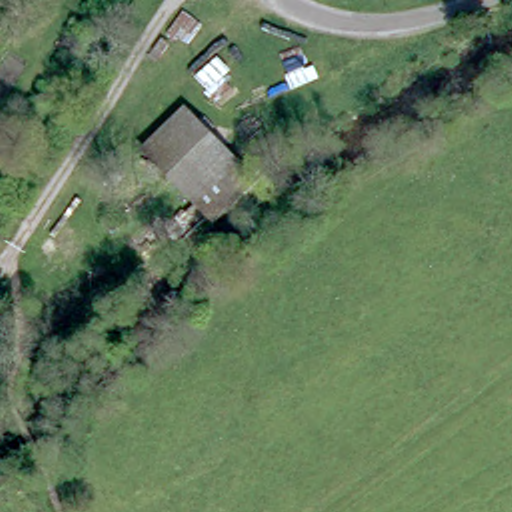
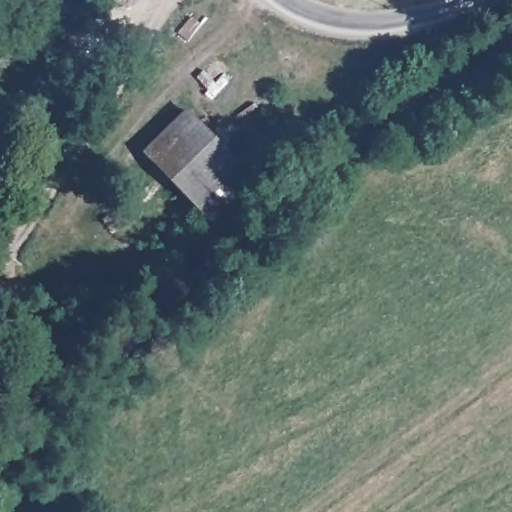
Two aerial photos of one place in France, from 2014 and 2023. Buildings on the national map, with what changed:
unchanged [(186,99),(250,164),(202,207),(142,144),(186,99)]

